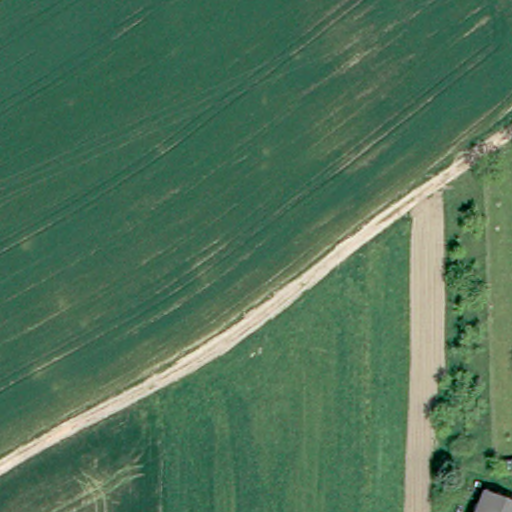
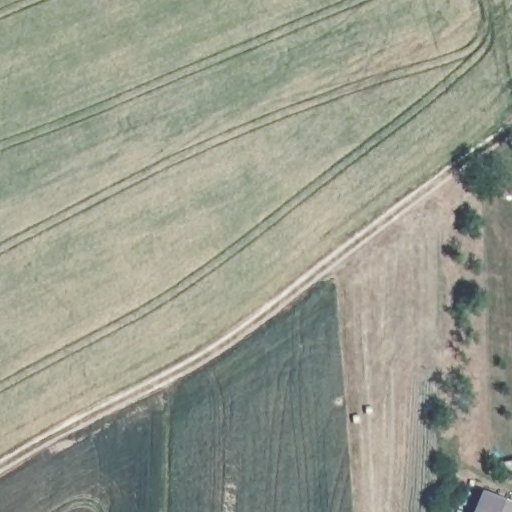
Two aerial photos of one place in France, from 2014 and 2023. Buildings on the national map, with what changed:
unchanged [(511,512),(472,512),(481,497),(511,512)]

